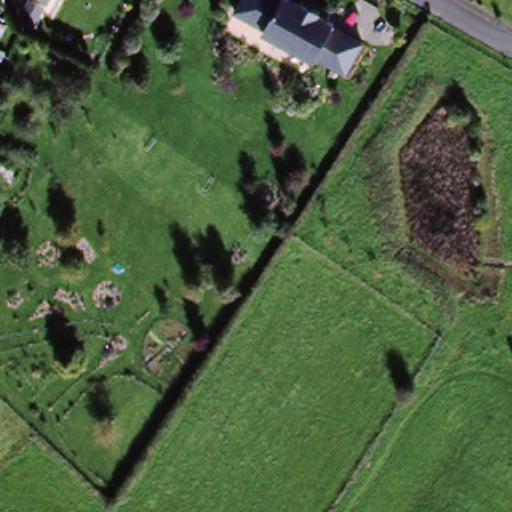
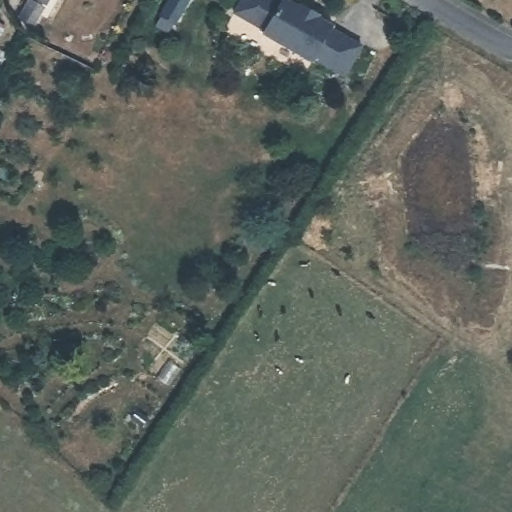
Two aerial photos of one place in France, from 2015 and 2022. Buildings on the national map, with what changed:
unchanged [(46,8),(36,0),(52,0),(46,8)]
unchanged [(332,31),(361,49),(343,80),(313,61),(311,65),(261,35),(263,31),(234,14),(243,0),(280,0),(281,1),(282,0),(286,0),(301,9),(303,6),(318,16),(316,18),(334,29),(332,31)]
unchanged [(15,20),(26,4),(42,15),(31,30),(15,20)]

